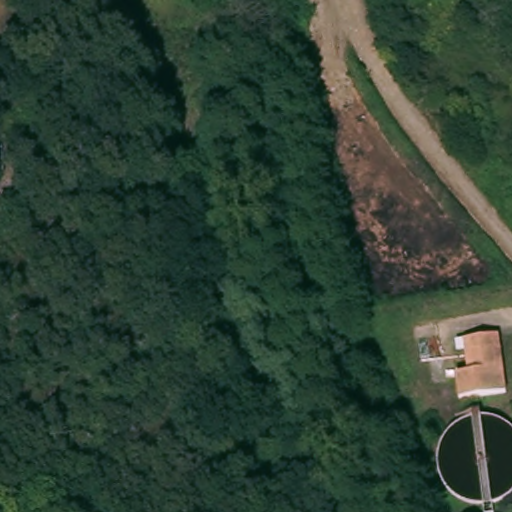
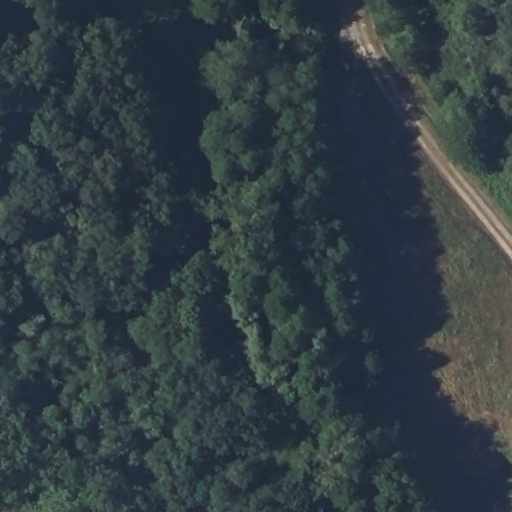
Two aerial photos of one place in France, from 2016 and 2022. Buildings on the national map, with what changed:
demolished [(468,363),(470,331),(503,333),(502,389),(452,389),(453,362),(468,363)]

